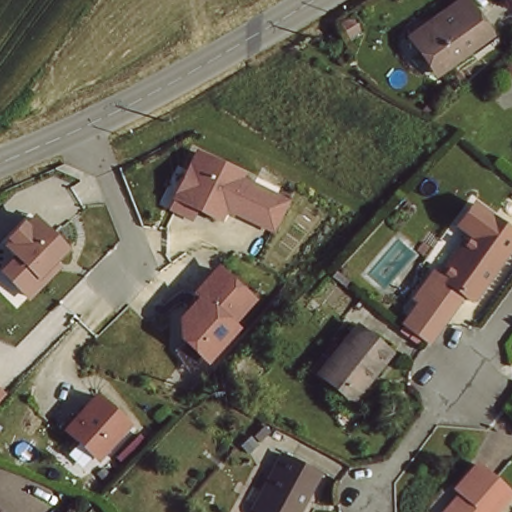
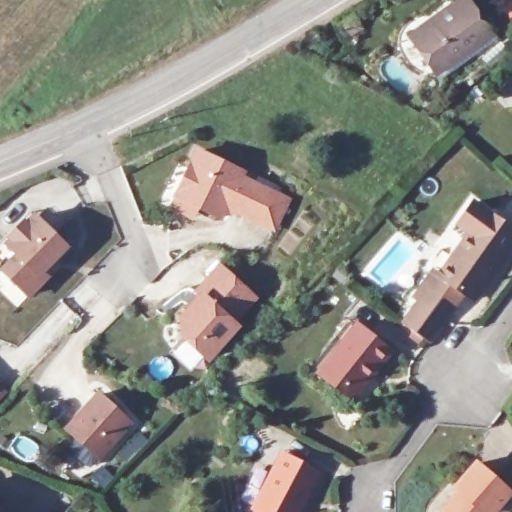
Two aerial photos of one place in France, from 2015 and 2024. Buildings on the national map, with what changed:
unchanged [(488,41),(432,72),(414,40),(454,17),(451,12),(467,3),(488,41)]
unchanged [(348,35),(340,41),(335,31),(343,26),(348,35)]
unchanged [(243,164),(243,172),(291,191),(276,224),(228,209),(225,217),(175,197),(194,147),(243,164)]
unchanged [(55,250),(60,256),(28,292),(0,267),(0,263),(10,254),(0,242),(0,240),(21,215),(25,217),(36,207),(66,239),(55,250)]
unchanged [(483,299),(446,278),(471,234),(480,239),(486,224),(506,236),(499,250),(508,254),(483,299)]
unchanged [(258,298),(238,321),(206,358),(176,334),(176,312),(196,292),(191,286),(218,261),(258,298)]
unchanged [(416,298),(440,315),(423,339),(398,322),(416,298)]
unchanged [(387,356),(353,398),(321,373),(354,330),(387,356)]
unchanged [(132,418),(96,457),(60,423),(95,385),(132,418)]
unchanged [(322,476),(303,512),(263,512),(257,508),(285,456),(322,476)]
unchanged [(506,495),(491,512),(442,512),(457,494),(452,489),(472,467),(506,495)]

